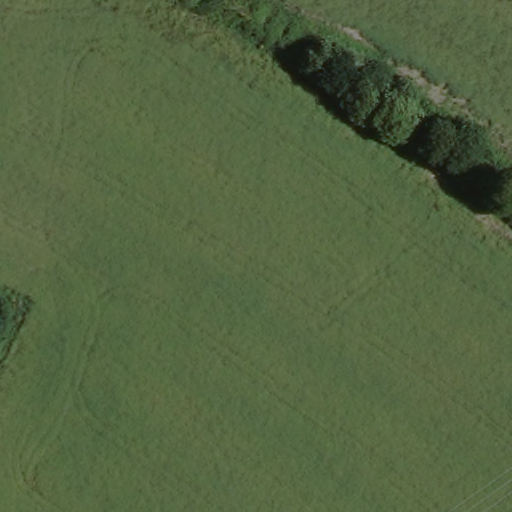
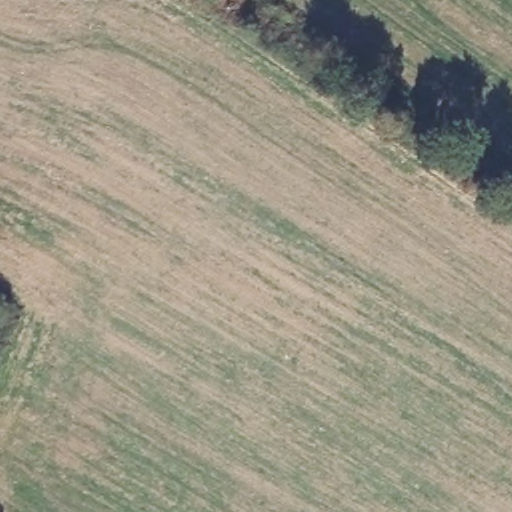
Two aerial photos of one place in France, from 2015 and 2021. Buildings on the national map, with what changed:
[]

